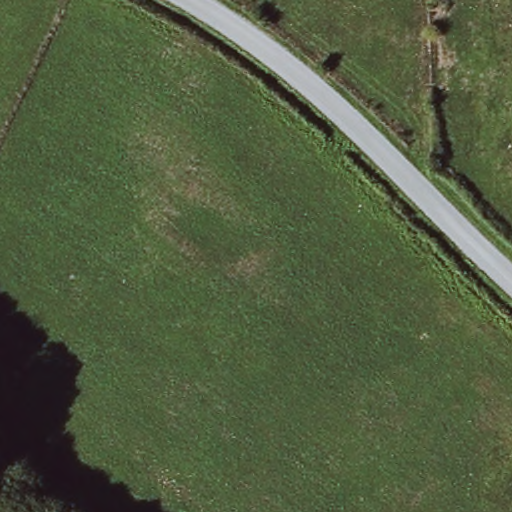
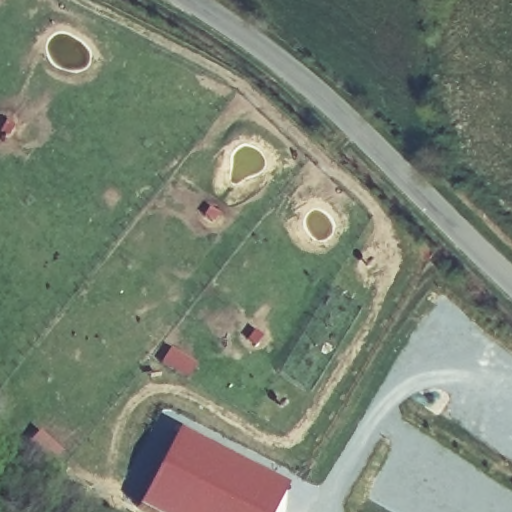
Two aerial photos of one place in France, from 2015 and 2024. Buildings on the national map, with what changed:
new [(168,347),(195,364),(186,379),(158,362),(168,347)]
new [(38,429),(61,451),(51,463),(26,442),(38,429)]
new [(279,512),(149,512),(136,505),(174,430),(287,485),(278,510),(280,511),(279,512)]

